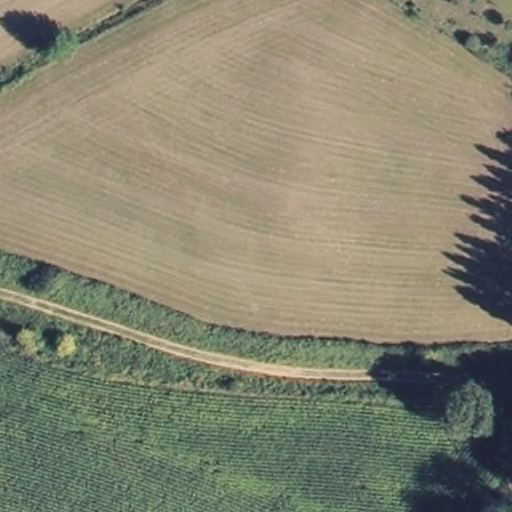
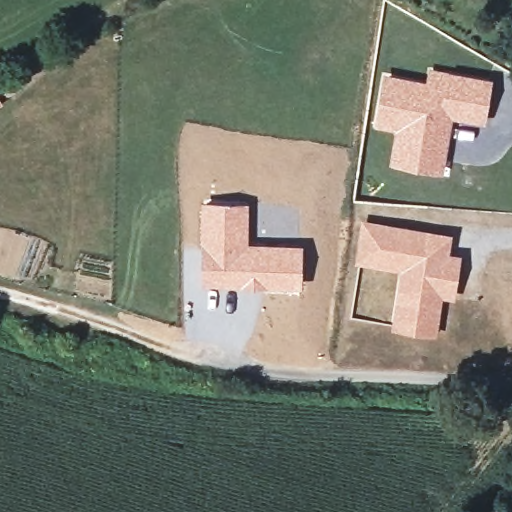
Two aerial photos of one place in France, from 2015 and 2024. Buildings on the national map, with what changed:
new [(426,82),(428,67),(449,70),(493,77),(486,122),(452,116),(443,173),(391,165),(396,131),(374,127),(383,71),(426,82)]
new [(245,204),(245,244),(299,244),(299,292),(263,293),(264,283),(205,283),(205,203),(245,204)]
new [(453,233),(450,252),(462,254),(456,299),(442,297),(436,338),(391,331),(401,271),(355,264),(361,219),(453,233)]

